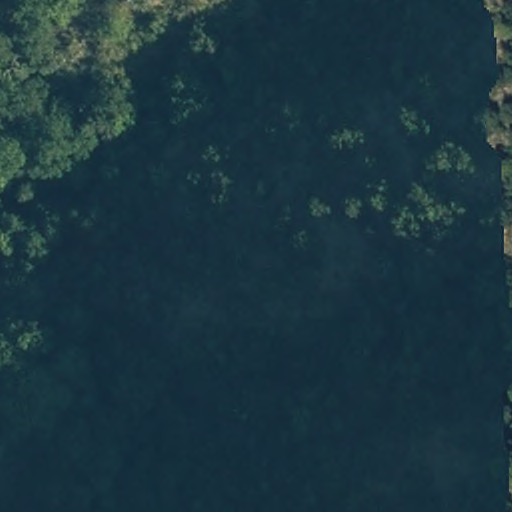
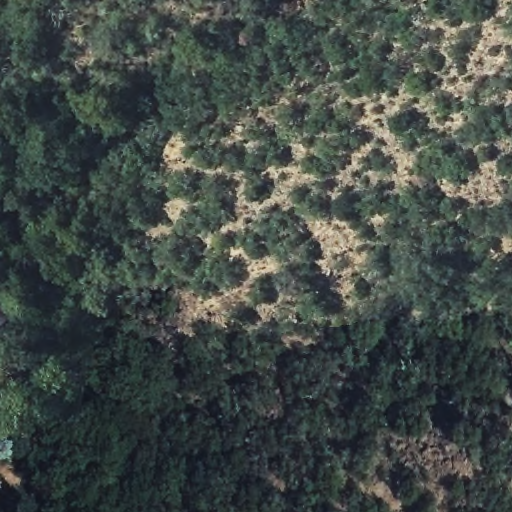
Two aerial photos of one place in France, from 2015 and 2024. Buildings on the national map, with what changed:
unchanged [(0,260),(33,305),(8,324),(0,312),(0,260)]

